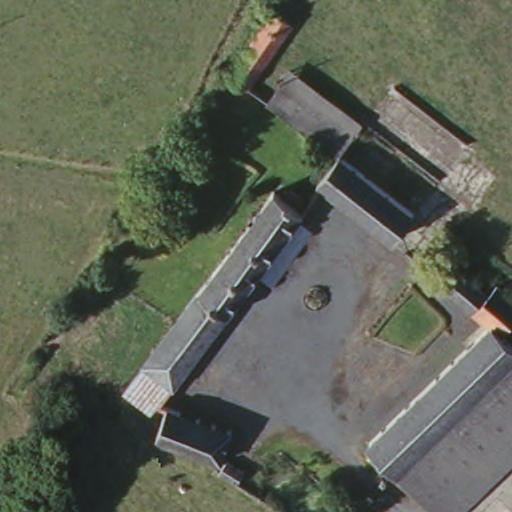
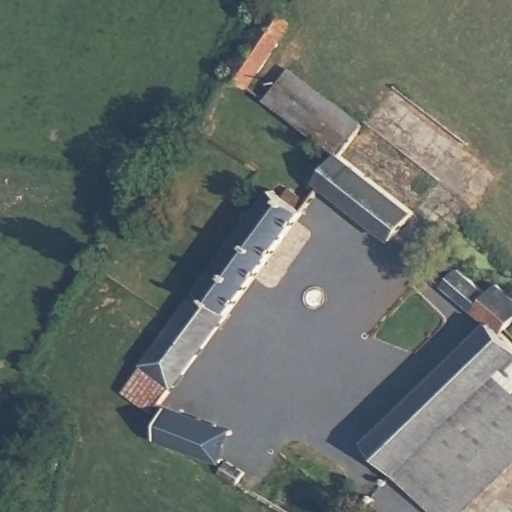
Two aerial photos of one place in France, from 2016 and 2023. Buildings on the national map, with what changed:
unchanged [(274,11),(296,26),(256,86),(232,72),(231,71),(274,11)]
unchanged [(302,61),(370,119),(353,139),(352,138),(346,133),(345,132),(335,124),(316,111),(278,88),(302,61)]
unchanged [(348,167),(332,153),(345,132),(346,133),(352,138),(353,139),(442,194),(407,231),(348,167)]
unchanged [(151,443),(157,418),(123,394),(141,364),(197,287),(189,282),(267,179),(308,213),(229,314),(232,317),(176,387),(167,408),(231,429),(214,463),(151,443)]
unchanged [(483,329),(447,287),(454,277),(483,302),(497,288),(512,300),(512,323),(501,337),(512,349),(512,459),(459,512),(426,512),(397,473),(370,442),(483,329)]

